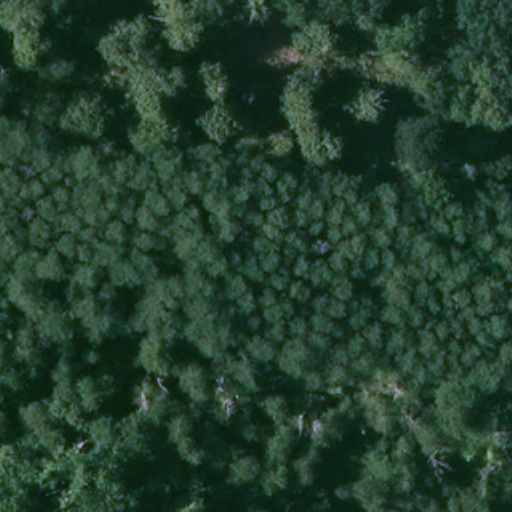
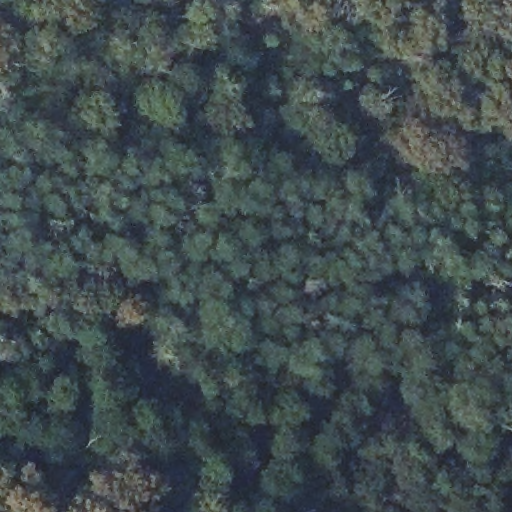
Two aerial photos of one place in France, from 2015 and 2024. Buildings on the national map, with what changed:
[]

